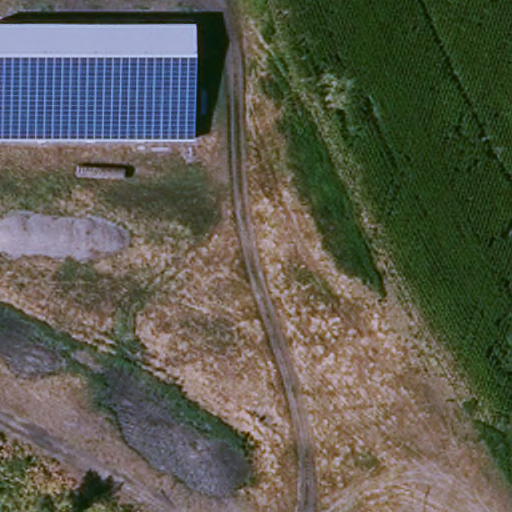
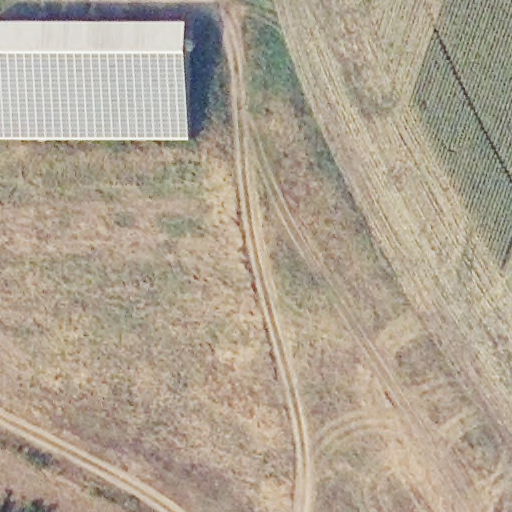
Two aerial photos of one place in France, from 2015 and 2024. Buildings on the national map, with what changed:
unchanged [(194,139),(0,140),(0,23),(194,24),(194,139)]

